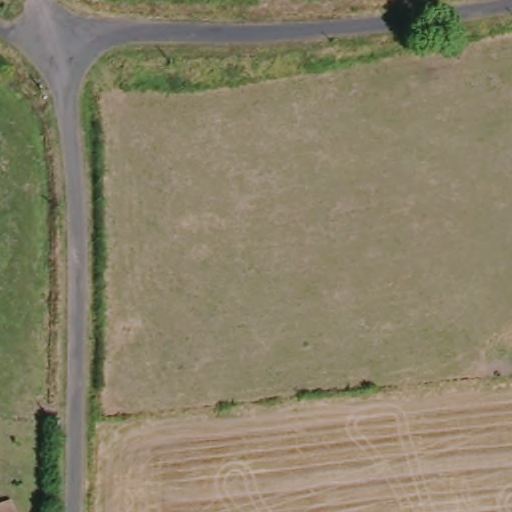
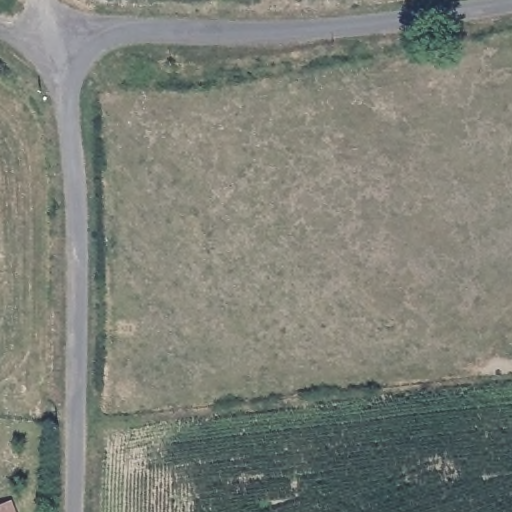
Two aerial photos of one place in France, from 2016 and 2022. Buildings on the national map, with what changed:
unchanged [(0,512),(0,505),(9,501),(14,512),(0,512)]

